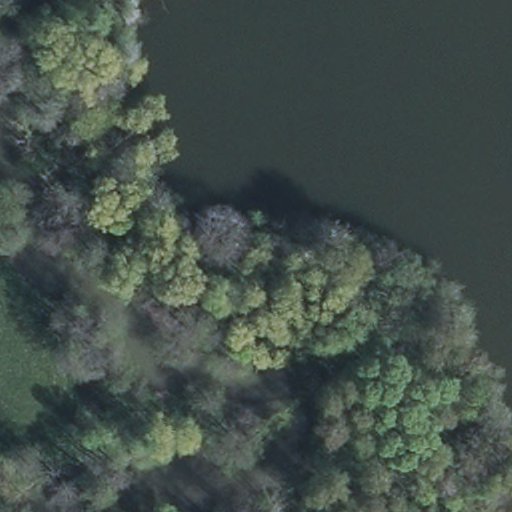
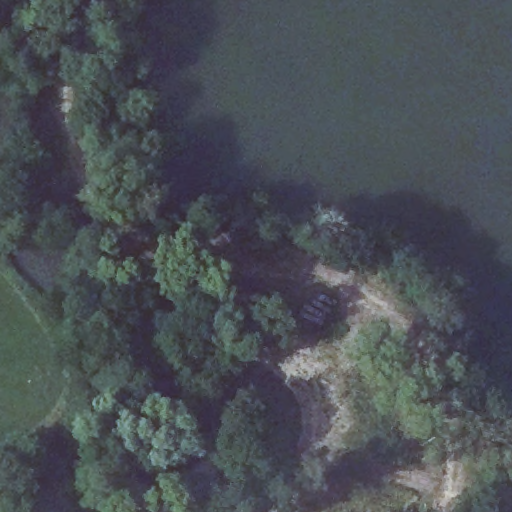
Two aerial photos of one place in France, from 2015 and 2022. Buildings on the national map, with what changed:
[]

